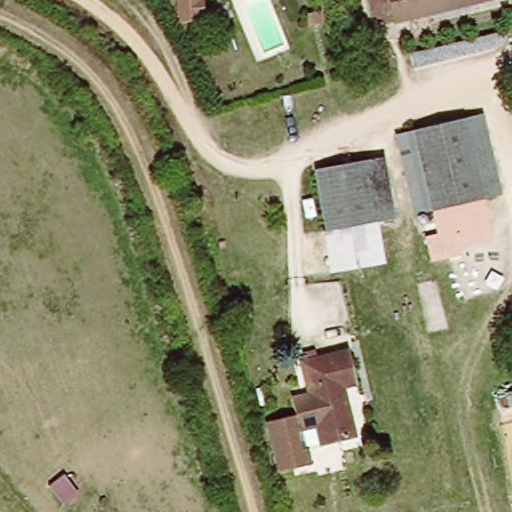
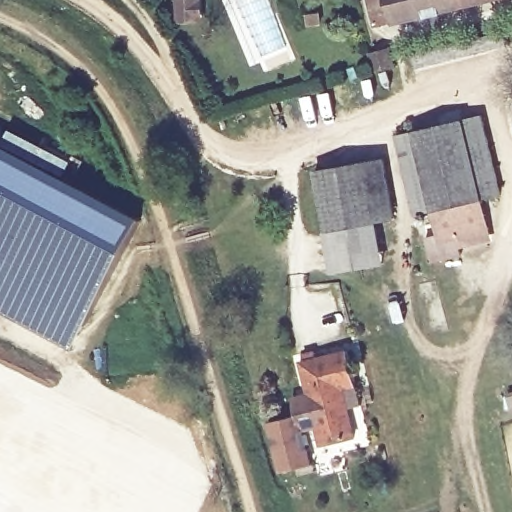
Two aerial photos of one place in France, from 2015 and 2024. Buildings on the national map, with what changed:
unchanged [(368,0),(479,0),(374,24),(368,0)]
unchanged [(349,58),(358,56),(373,52),(379,73),(364,77),(352,81),(349,58)]
unchanged [(499,190),(480,195),(488,228),(426,243),(419,213),(408,216),(389,138),(481,116),(499,190)]
new [(143,217),(74,348),(0,309),(0,141),(143,217)]
unchanged [(389,219),(325,232),(314,176),(378,163),(389,219)]
new [(384,263),(331,274),(325,232),(377,221),(384,263)]
unchanged [(296,410),(291,394),(306,389),(298,350),(344,339),(354,381),(341,385),(353,432),(321,442),(315,421),(294,426),(299,445),(305,443),(309,457),(283,464),(278,465),(266,419),(270,418),(296,410)]

